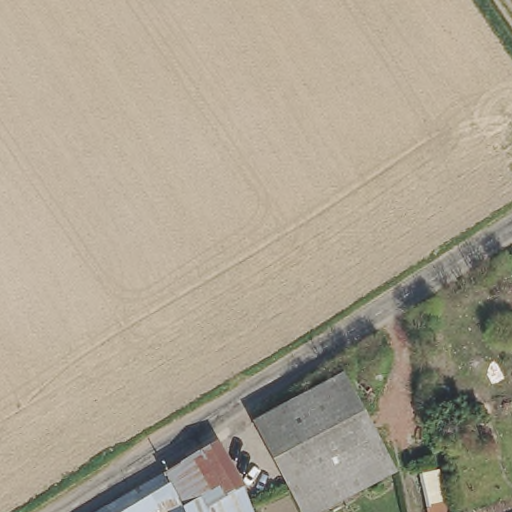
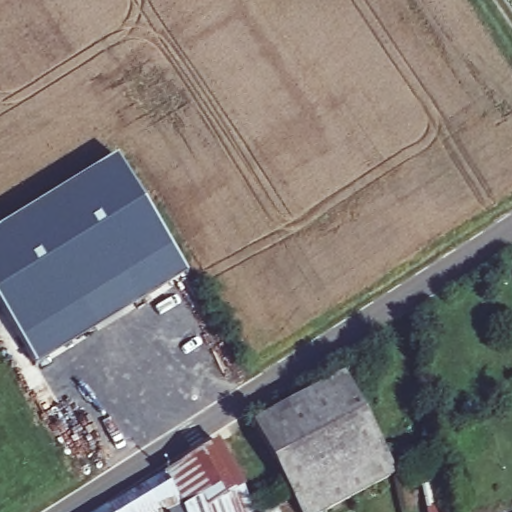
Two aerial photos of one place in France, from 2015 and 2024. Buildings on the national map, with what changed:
new [(0,230),(118,158),(173,249),(188,275),(38,365),(23,341),(0,304),(0,230)]
unchanged [(397,469),(312,512),(307,512),(258,423),(348,378),(397,469)]
unchanged [(172,499),(158,507),(150,512),(100,512),(148,485),(173,472),(223,443),(246,496),(252,512),(217,512),(211,499),(189,507),(192,512),(178,512),(177,511),(172,499)]
unchanged [(433,496),(453,487),(456,512),(432,512),(430,497),(433,496)]

